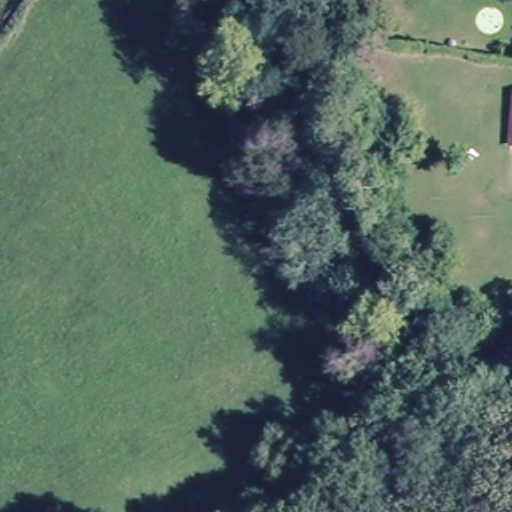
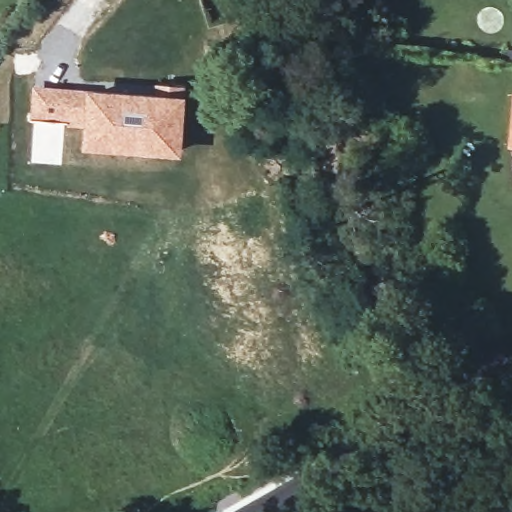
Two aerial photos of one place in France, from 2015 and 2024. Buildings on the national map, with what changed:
new [(33,87),(113,89),(187,94),(183,154),(84,147),(85,124),(31,118),(33,87)]
unchanged [(508,91),(512,91),(512,149),(506,148),(508,91)]

